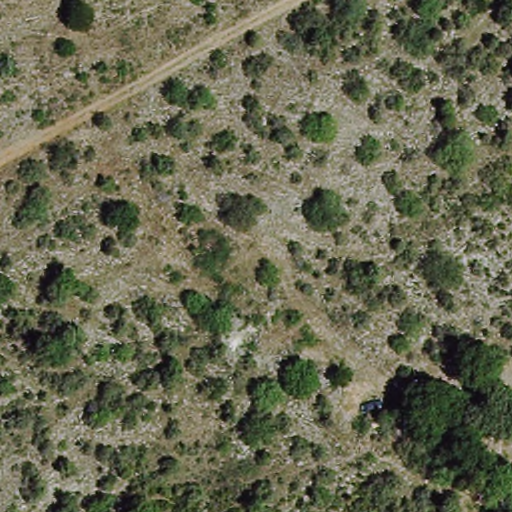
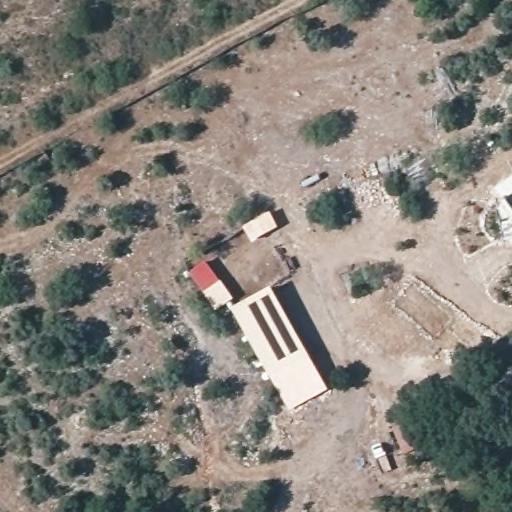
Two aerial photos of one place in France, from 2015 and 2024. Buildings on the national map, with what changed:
new [(234,297),(216,310),(189,271),(205,260),(234,297)]
new [(271,284),(309,354),(270,376),(231,307),(271,284)]
new [(289,410),(270,376),(309,354),(329,388),(289,410)]

